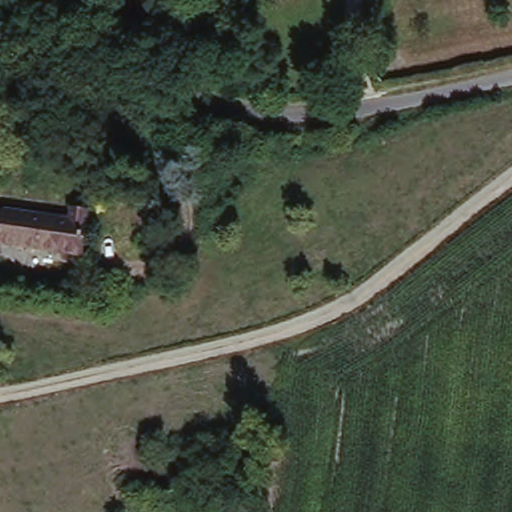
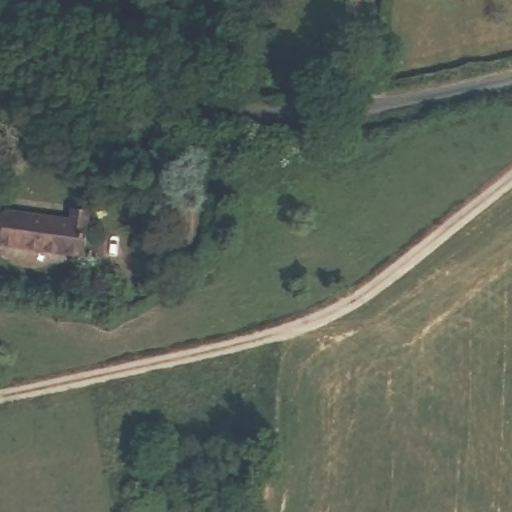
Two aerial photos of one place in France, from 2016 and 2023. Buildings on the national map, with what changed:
unchanged [(85,254),(2,245),(7,212),(75,217),(76,209),(88,210),(85,254)]

